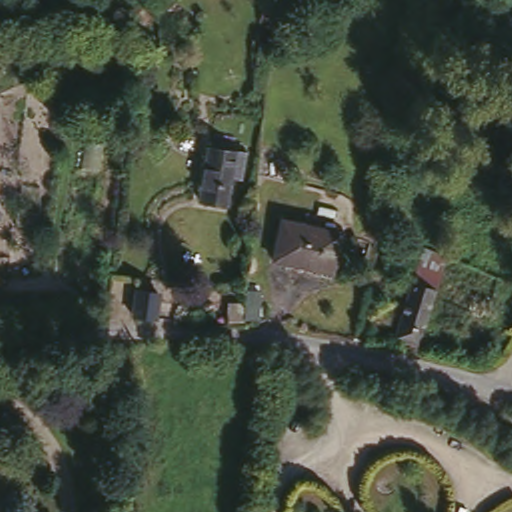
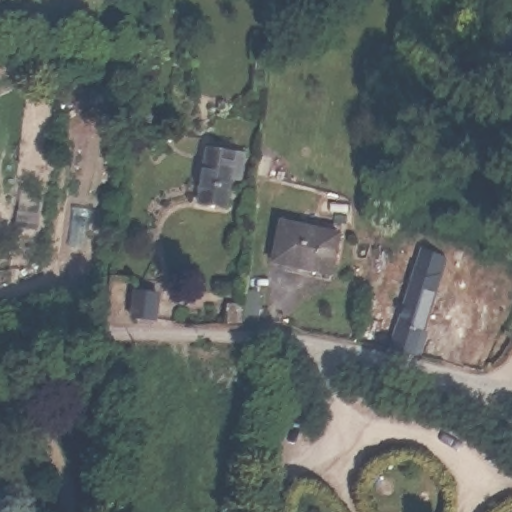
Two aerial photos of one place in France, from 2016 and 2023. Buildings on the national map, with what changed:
unchanged [(235,141),(229,204),(200,203),(205,138),(235,141)]
unchanged [(340,224),(336,266),(278,260),(281,218),(340,224)]
unchanged [(441,280),(431,340),(392,331),(408,270),(441,280)]
unchanged [(137,285),(156,287),(152,321),(134,320),(137,285)]

